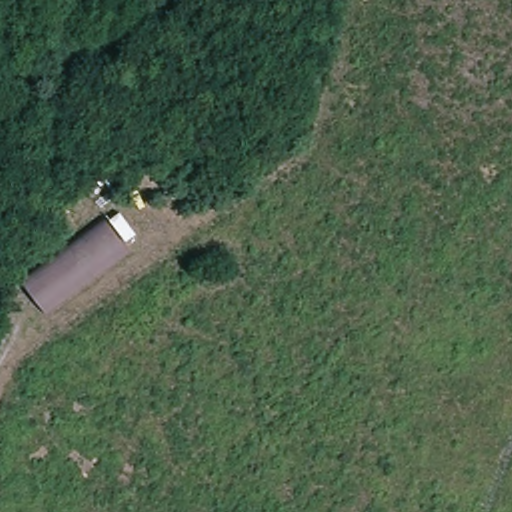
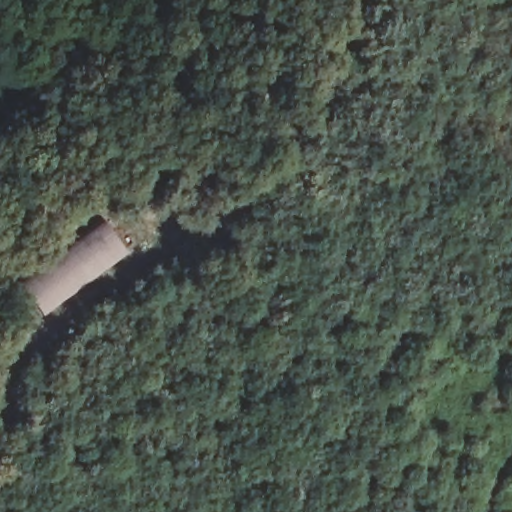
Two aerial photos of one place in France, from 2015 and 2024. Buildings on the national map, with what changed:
unchanged [(46,317),(20,287),(103,218),(129,255),(46,317)]

